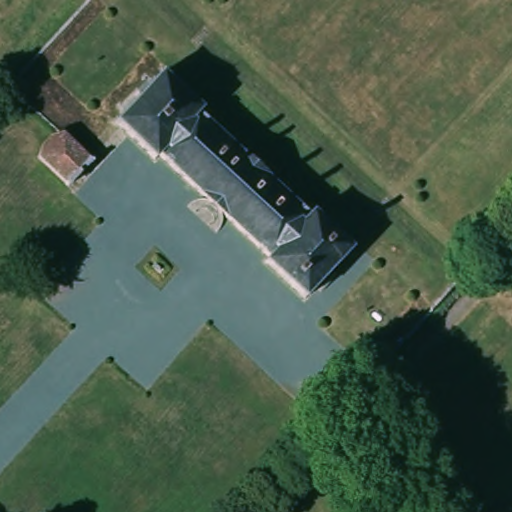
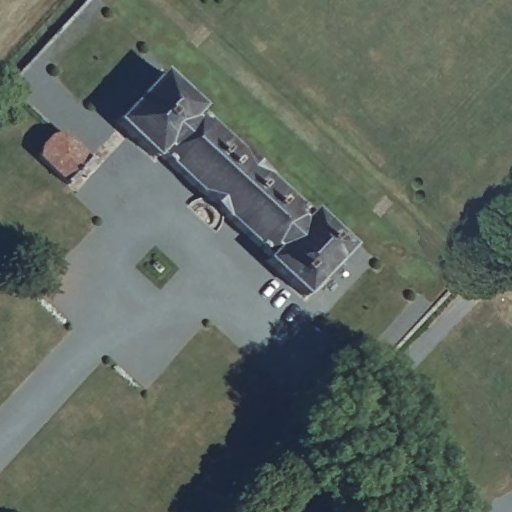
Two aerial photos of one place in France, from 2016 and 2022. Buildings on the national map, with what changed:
unchanged [(355,265),(328,294),(318,286),(307,298),(269,266),(275,259),(230,220),(223,234),(212,238),(207,231),(212,226),(209,218),(199,210),(193,220),(188,216),(190,207),(204,197),(161,158),(156,163),(114,125),(124,113),(116,105),(143,75),(152,82),(161,72),(205,109),(201,114),(238,146),(246,137),(285,171),(276,181),(314,215),(318,210),(357,245),(347,256),(355,265)]
unchanged [(43,140),(49,134),(63,130),(89,157),(66,181),(38,155),(43,140)]
unchanged [(451,274),(453,272),(457,267),(460,263),(476,275),(466,286),(451,274)]

